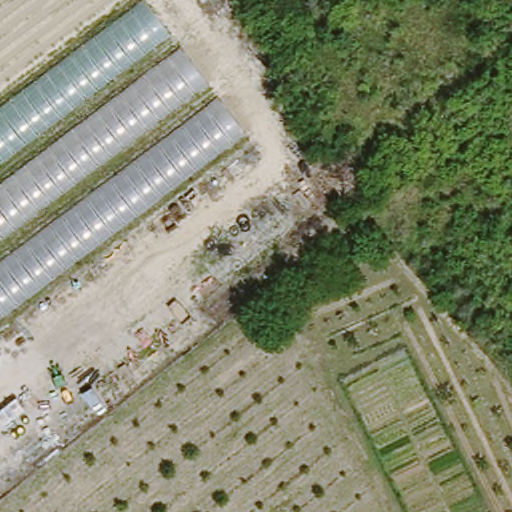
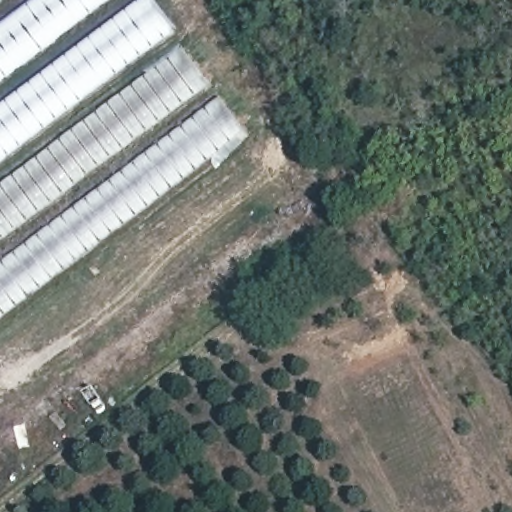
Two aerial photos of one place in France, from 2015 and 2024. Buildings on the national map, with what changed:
new [(26,0),(104,0),(0,78),(0,20),(26,0)]
unchanged [(146,0),(247,130),(0,318),(0,105),(139,0),(146,0)]

